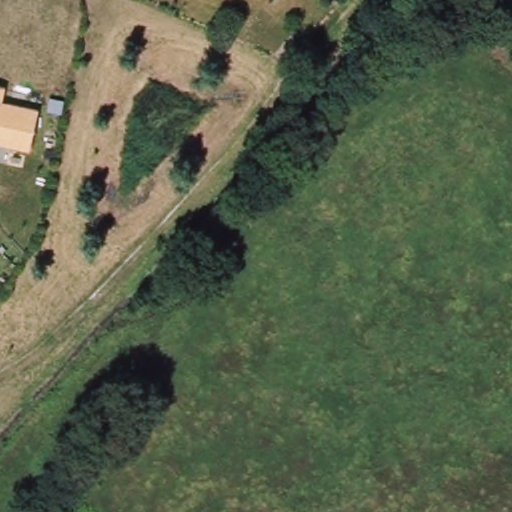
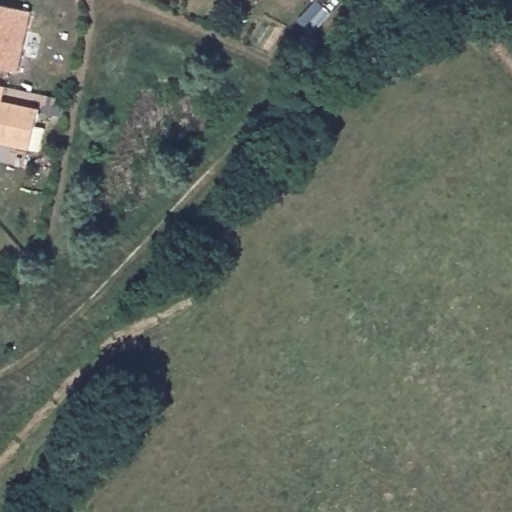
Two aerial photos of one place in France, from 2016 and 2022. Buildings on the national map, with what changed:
new [(318,2),(331,14),(311,35),(299,24),(318,2)]
new [(31,12),(18,72),(0,68),(0,6),(31,12)]
unchanged [(6,87),(3,103),(39,110),(32,150),(0,144),(0,86),(6,87)]

